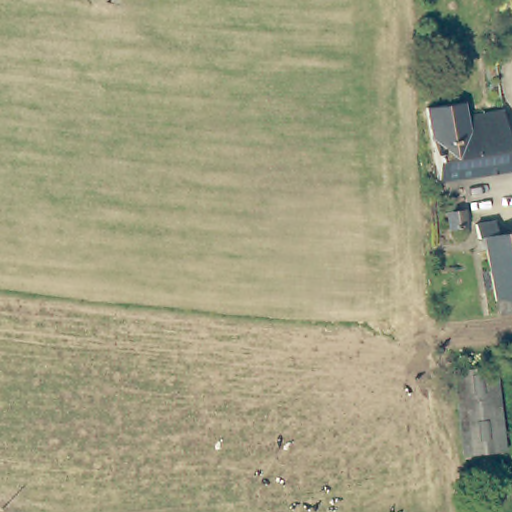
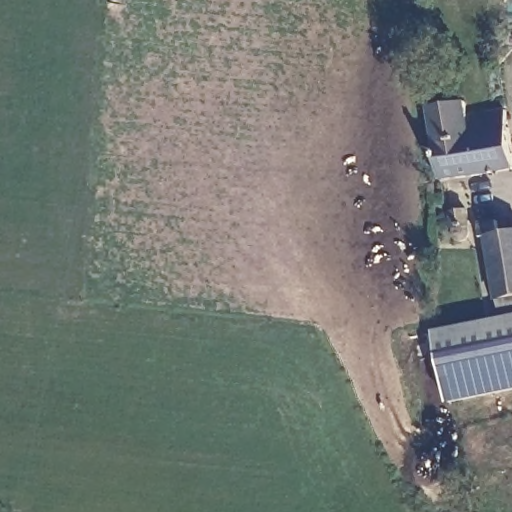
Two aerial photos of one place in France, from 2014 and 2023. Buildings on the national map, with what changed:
unchanged [(466,114),(503,111),(512,167),(512,174),(436,184),(424,105),(462,100),(466,114)]
unchanged [(495,312),(493,299),(484,242),(476,243),(473,224),(496,222),(497,234),(512,233),(512,310),(495,312)]
new [(431,331),(512,314),(512,390),(446,403),(431,331)]

